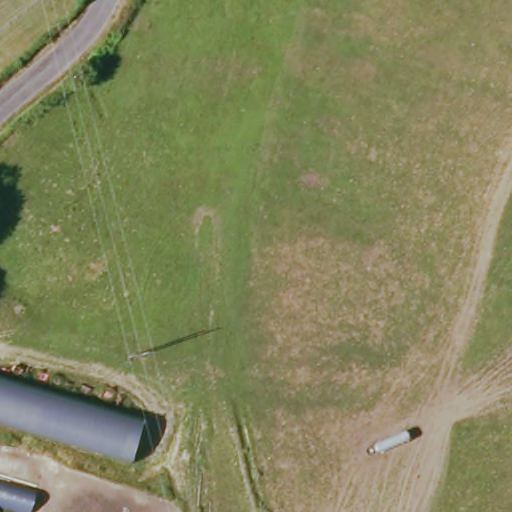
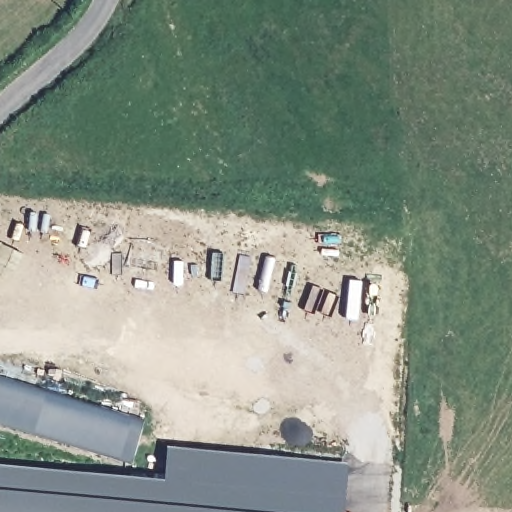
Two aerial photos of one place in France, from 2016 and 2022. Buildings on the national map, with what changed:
unchanged [(147,424),(135,465),(0,424),(0,380),(147,424)]
new [(162,474),(161,447),(336,457),(333,512),(0,512),(0,461),(162,474)]

